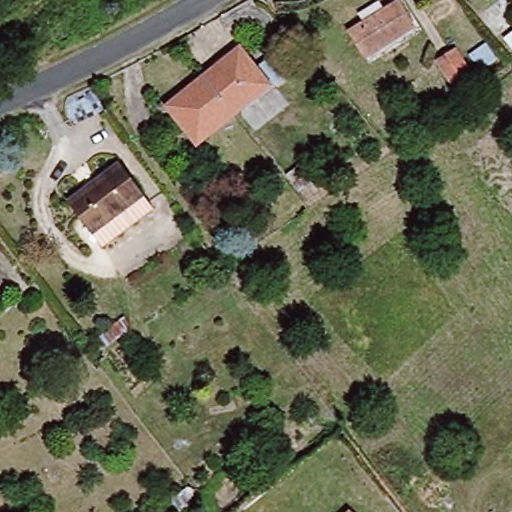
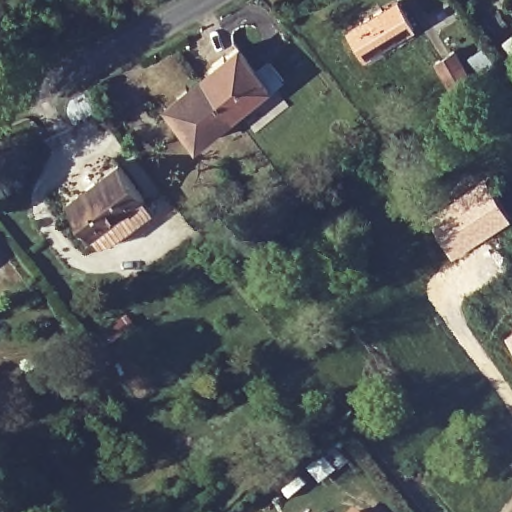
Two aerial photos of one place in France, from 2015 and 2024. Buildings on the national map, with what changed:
unchanged [(397,3),(412,28),(364,56),(350,31),(397,3)]
unchanged [(468,59),(487,44),(499,62),(481,74),(468,59)]
unchanged [(238,49),(266,84),(231,112),(203,77),(238,49)]
unchanged [(452,90),(434,64),(454,50),(473,77),(452,90)]
unchanged [(203,77),(231,112),(198,140),(169,105),(203,77)]
unchanged [(69,199),(117,162),(151,207),(103,243),(69,199)]
new [(487,178),(511,217),(450,256),(426,218),(487,178)]
new [(512,350),(503,337),(512,331),(512,350)]

